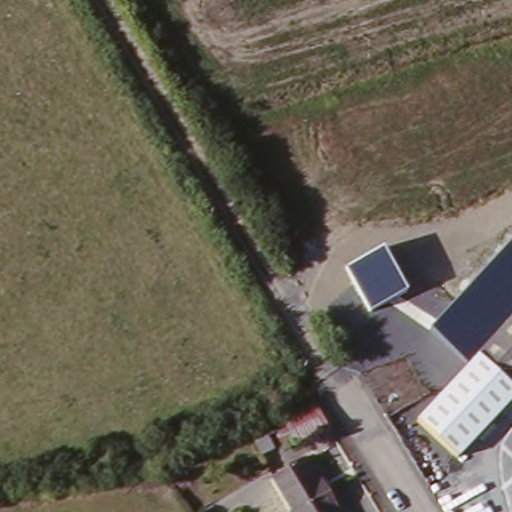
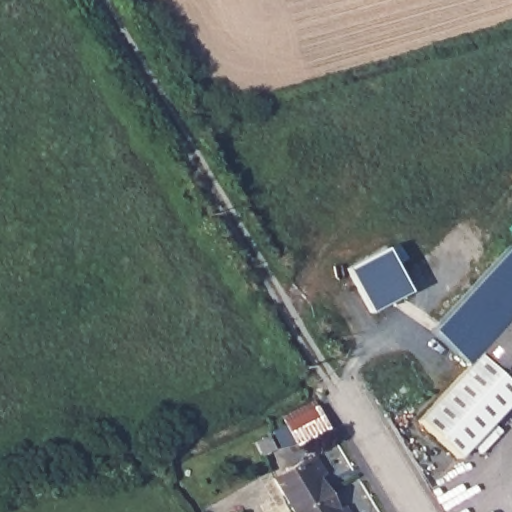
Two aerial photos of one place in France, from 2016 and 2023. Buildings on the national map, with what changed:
unchanged [(480,352),(468,366),(429,328),(512,241),(512,317),(480,352)]
unchanged [(345,270),(384,247),(408,292),(369,314),(345,270)]
unchanged [(480,352),(512,317),(512,380),(480,352)]
unchanged [(512,380),(512,393),(459,452),(421,417),(480,352),(512,380)]
unchanged [(287,451),(276,428),(315,406),(327,428),(287,451)]
unchanged [(274,479),(312,457),(323,474),(314,478),(324,497),(298,512),(294,512),(274,479)]
unchanged [(324,497),(333,512),(298,512),(324,497)]
unchanged [(345,507),(348,512),(336,512),(345,507)]

